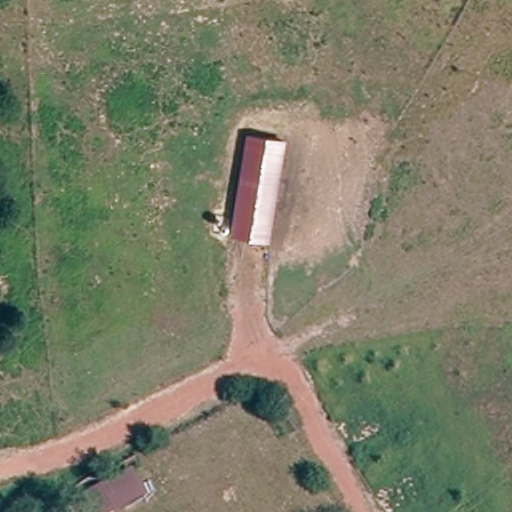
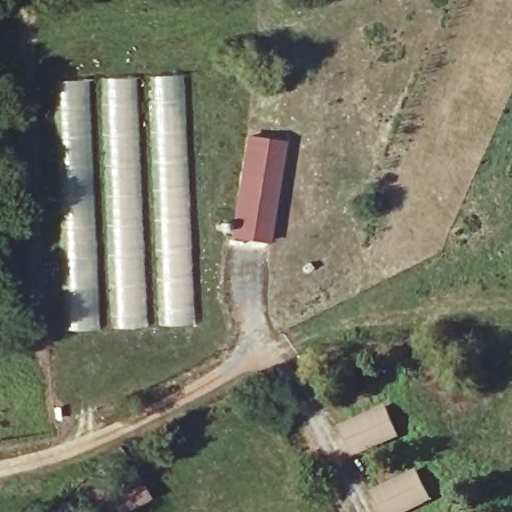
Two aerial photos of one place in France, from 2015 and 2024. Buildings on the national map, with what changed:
new [(154,75),(186,74),(198,323),(164,325),(154,75)]
new [(133,76),(150,326),(117,328),(100,77),(133,76)]
new [(57,80),(85,79),(95,329),(65,329),(57,80)]
unchanged [(269,241),(232,235),(247,135),(286,140),(269,241)]
new [(337,423),(383,402),(397,433),(351,454),(337,423)]
unchanged [(117,512),(88,512),(77,491),(129,466),(148,497),(117,512)]
new [(373,491),(416,466),(433,497),(407,512),(384,512),(373,491)]

